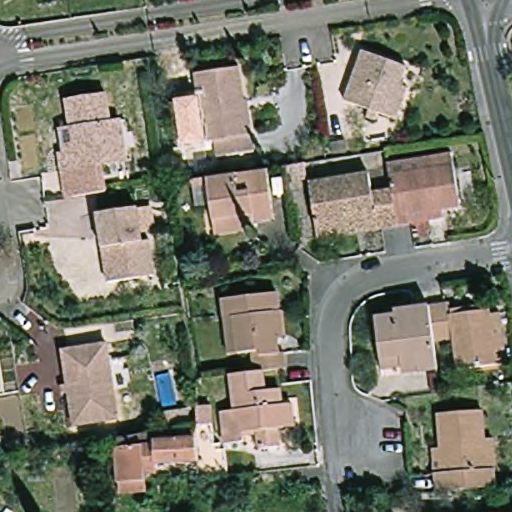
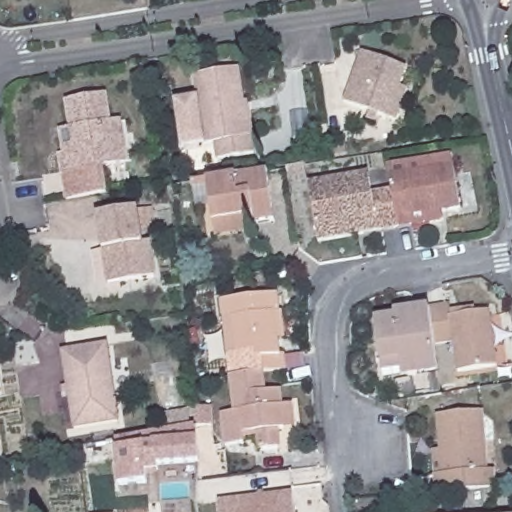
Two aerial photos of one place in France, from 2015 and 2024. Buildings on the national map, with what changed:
unchanged [(397,126),(345,106),(363,56),(408,73),(402,91),(410,94),(403,109),(397,126)]
unchanged [(255,156),(218,161),(215,145),(205,146),(196,79),(241,73),(245,106),(252,138),(255,156)]
unchanged [(71,155),(67,130),(77,128),(73,101),(112,95),(117,121),(127,120),(133,161),(122,163),(111,164),(115,190),(72,197),(66,155),(71,155)]
unchanged [(313,178),(294,181),(292,168),(312,165),(313,178)]
unchanged [(392,177),(456,168),(462,212),(411,219),(412,226),(399,228),(397,209),(395,204),(394,192),(392,177)]
unchanged [(220,238),(217,223),(211,188),(195,191),(193,184),(210,181),(267,171),(276,219),(256,223),(257,232),(220,238)]
unchanged [(320,231),(313,184),(371,176),(373,195),(394,192),(395,204),(397,209),(399,228),(377,231),(321,239),(320,231)]
unchanged [(106,256),(100,221),(140,215),(140,216),(155,214),(158,239),(145,241),(145,249),(153,247),(158,282),(121,288),(112,289),(106,256)]
unchanged [(225,321),(222,301),(277,294),(279,314),(272,315),(275,337),(278,336),(280,352),(284,351),(286,369),(263,372),(254,373),(251,353),(235,355),(228,356),(225,321)]
unchanged [(500,368),(462,372),(458,346),(437,350),(432,312),(453,308),(455,318),(493,313),(500,368)]
unchanged [(405,372),(386,374),(385,365),(379,325),(398,322),(397,316),(432,312),(437,350),(441,374),(425,376),(405,379),(405,372)]
unchanged [(123,425),(79,433),(66,358),(110,350),(123,425)]
unchanged [(295,428),(285,429),(278,430),(280,449),(260,451),(258,433),(243,434),(245,443),(227,445),(223,413),(235,412),(232,376),(254,373),(263,372),(265,392),(280,390),(282,405),(292,404),(295,428)]
unchanged [(212,427),(196,427),(196,409),(211,408),(212,427)]
unchanged [(500,470),(491,470),(485,471),(485,486),(440,490),(439,473),(445,473),(441,414),(487,411),(489,439),(497,438),(500,470)]
unchanged [(125,496),(123,487),(115,441),(196,427),(198,463),(156,465),(157,470),(145,472),(147,483),(149,492),(125,496)]
new [(292,493),(295,512),(220,512),(218,500),(292,493)]

